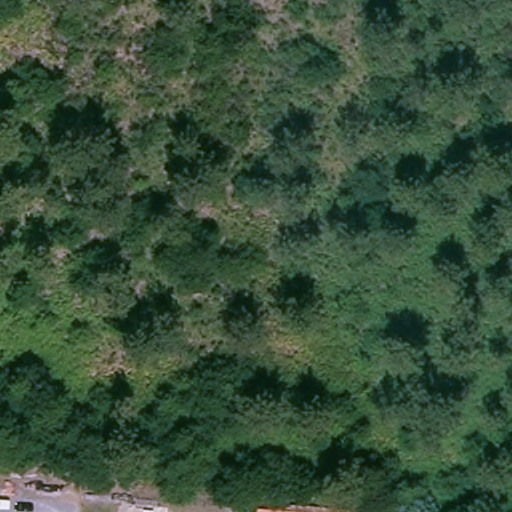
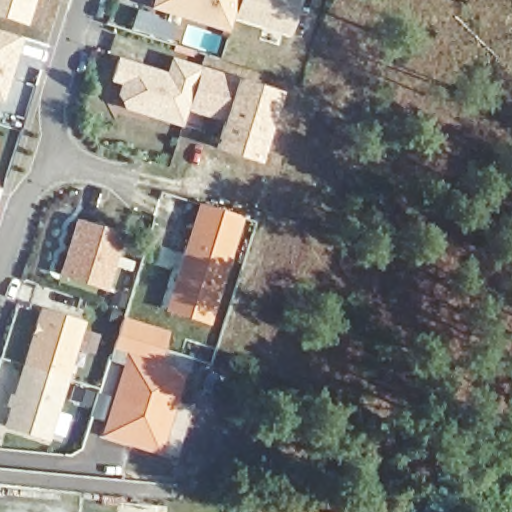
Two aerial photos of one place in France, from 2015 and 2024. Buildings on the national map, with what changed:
new [(0,17),(0,0),(34,0),(25,26),(0,17)]
new [(301,0),(290,36),(232,18),(226,33),(150,9),(153,0),(301,0)]
new [(135,9),(175,26),(169,42),(127,29),(135,9)]
new [(0,102),(0,32),(21,38),(2,103),(0,102)]
new [(116,96),(120,85),(110,81),(116,58),(166,72),(170,58),(198,66),(180,127),(124,109),(116,96)]
new [(235,78),(281,92),(259,165),(213,150),(221,123),(185,112),(198,66),(235,78)]
new [(165,311),(198,205),(244,218),(209,326),(165,311)]
new [(59,275),(75,220),(123,234),(107,291),(59,275)]
new [(40,308),(85,322),(49,442),(2,427),(40,308)]
new [(100,437),(123,365),(109,361),(121,318),(167,333),(162,351),(213,365),(206,385),(181,379),(160,455),(100,437)]
unchanged [(276,512),(245,512),(245,509),(276,512)]

